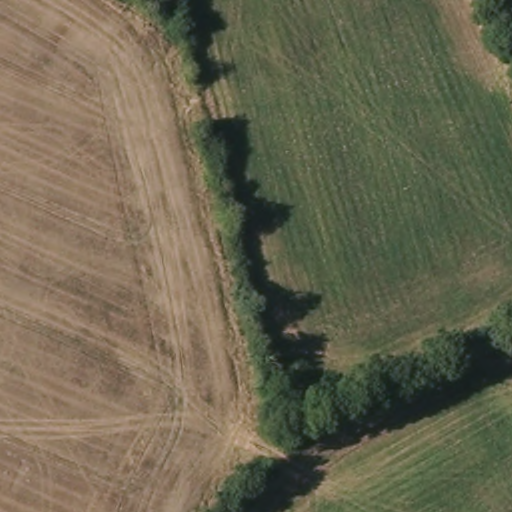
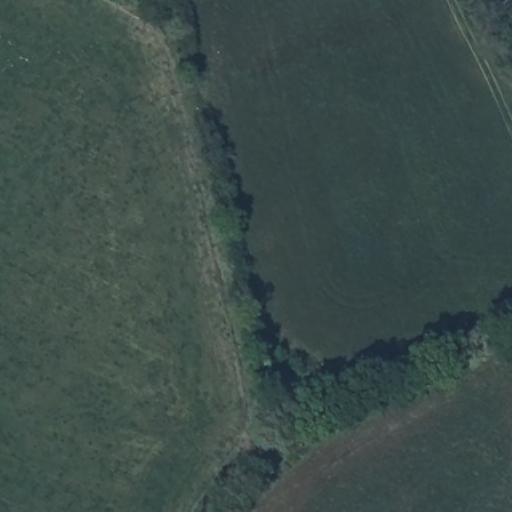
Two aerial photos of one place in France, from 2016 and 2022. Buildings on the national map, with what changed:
[]

